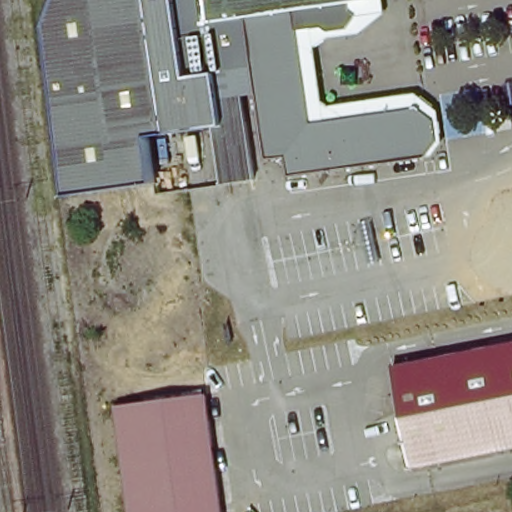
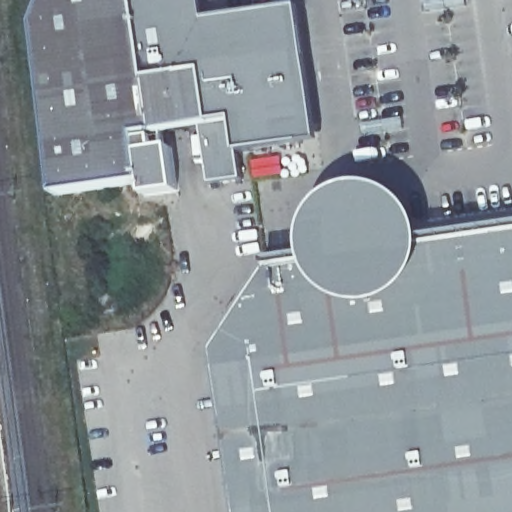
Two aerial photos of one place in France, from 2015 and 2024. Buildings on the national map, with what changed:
demolished [(133,137),(141,184),(52,198),(33,30),(45,0),(134,0),(155,134),(133,137)]
new [(243,179),(214,185),(200,126),(153,135),(155,151),(171,150),(177,190),(147,195),(145,184),(58,198),(36,25),(47,0),(205,0),(208,19),(301,10),(321,142),(242,154),(243,179)]
demolished [(320,38),(308,22),(285,26),(240,34),(237,20),(201,25),(209,77),(215,123),(200,126),(155,134),(134,0),(362,0),(362,4),(341,7),(345,15),(347,22),(335,36),(320,38)]
demolished [(285,26),(298,123),(403,105),(426,121),(430,144),(415,161),(280,181),(276,160),(255,163),(246,93),(243,70),(240,34),(285,26)]
demolished [(215,123),(209,77),(243,70),(246,93),(233,96),(242,183),(206,189),(200,126),(215,123)]
new [(371,99),(403,93),(427,110),(431,141),(421,159),(383,164),(371,99)]
new [(215,354),(270,268),(310,262),(308,245),(311,227),(320,213),(332,199),(349,190),(366,188),(386,190),(402,198),(417,210),(424,224),(427,237),(428,247),(512,234),(512,512),(238,512),(215,354)]
demolished [(512,342),(512,446),(402,469),(379,371),(512,342)]
demolished [(103,413),(189,394),(209,512),(117,512),(103,413)]

